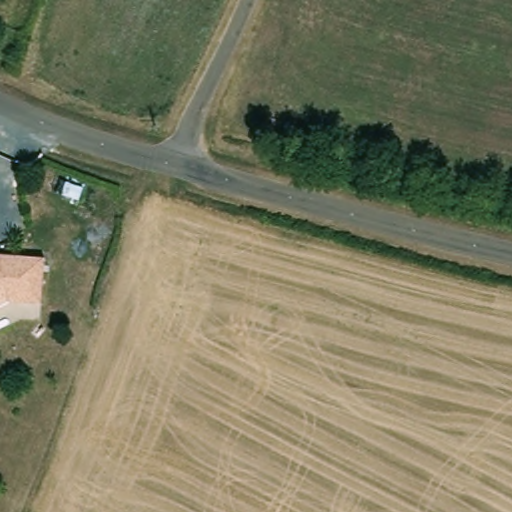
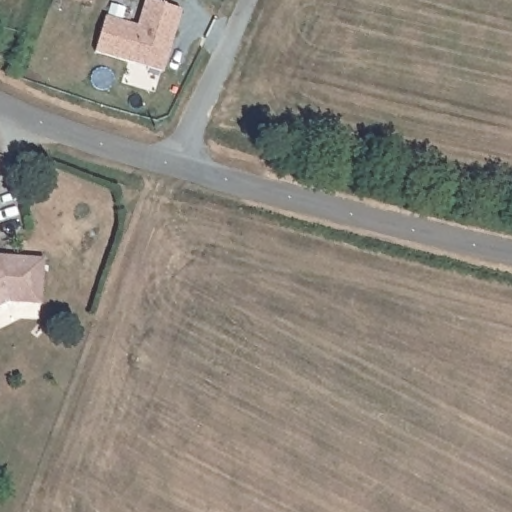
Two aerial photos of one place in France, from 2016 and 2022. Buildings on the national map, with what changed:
new [(162,71),(95,52),(105,15),(137,24),(144,0),(148,0),(180,9),(162,71)]
unchanged [(13,259),(13,262),(32,264),(32,260),(44,262),(41,307),(10,304),(0,309),(0,258),(13,259)]

